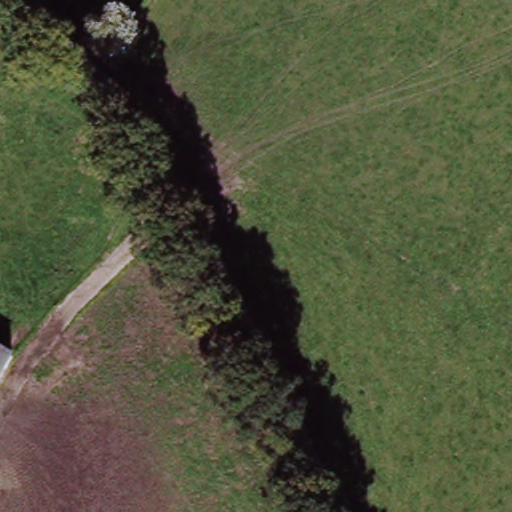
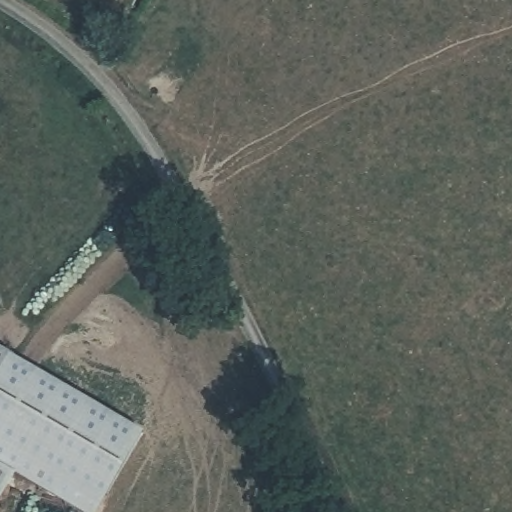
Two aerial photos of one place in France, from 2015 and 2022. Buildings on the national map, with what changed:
new [(5,360),(7,353),(145,432),(99,512),(78,512),(17,475),(0,503),(0,367),(5,360)]
unchanged [(5,360),(0,367),(0,357),(5,360)]

